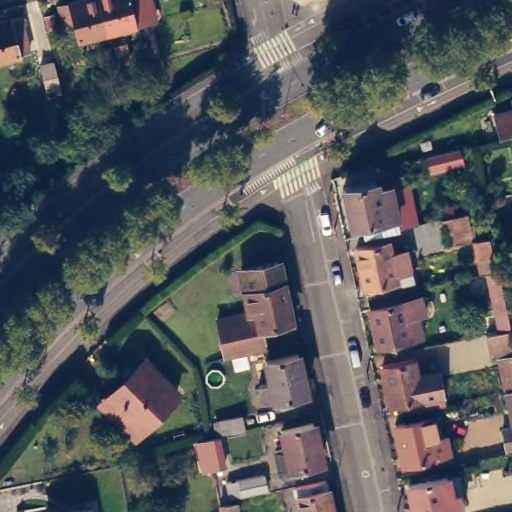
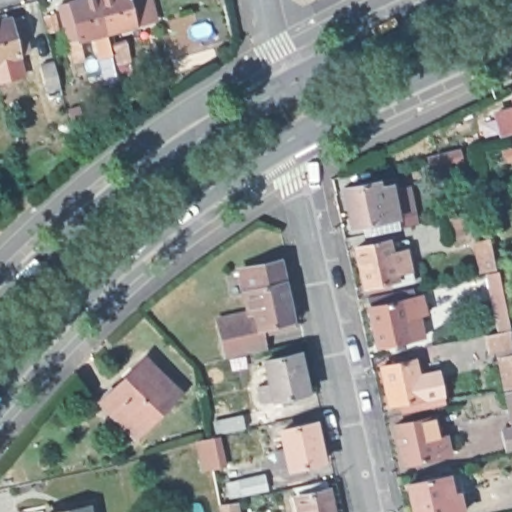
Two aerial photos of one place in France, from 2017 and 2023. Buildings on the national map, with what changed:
unchanged [(85,35),(90,55),(78,57),(74,36),(73,37),(64,0),(105,0),(112,28),(85,35)]
unchanged [(105,0),(157,0),(160,15),(112,28),(105,0)]
unchanged [(1,18),(0,14),(0,11),(10,9),(12,15),(26,11),(35,47),(23,50),(24,51),(0,57),(0,18),(1,18)]
unchanged [(54,28),(50,12),(60,9),(65,25),(54,28)]
unchanged [(125,43),(130,61),(119,64),(114,46),(125,43)]
unchanged [(108,74),(102,49),(110,47),(116,72),(108,74)]
unchanged [(48,92),(41,66),(55,62),(61,88),(48,92)]
unchanged [(412,283),(371,292),(370,286),(365,287),(356,247),(355,238),(370,235),(367,224),(352,227),(343,183),(375,176),(375,181),(377,187),(390,184),(396,217),(399,229),(378,233),(380,243),(388,241),(390,254),(405,251),(412,283)]
unchanged [(471,232),(446,237),(441,215),(456,212),(465,211),(471,232)]
unchanged [(480,269),(473,236),(489,235),(495,264),(480,269)]
unchanged [(293,321),(263,327),(266,347),(224,356),(217,313),(245,307),(235,266),(282,255),(293,321)]
unchanged [(498,328),(486,269),(498,267),(509,312),(511,325),(512,328),(512,341),(490,346),(487,330),(498,328)]
unchanged [(405,290),(407,300),(403,301),(404,316),(418,313),(423,337),(402,341),(405,348),(395,349),(395,344),(378,347),(367,298),(405,290)]
unchanged [(303,349),(312,388),(293,393),(295,399),(286,401),(285,395),(267,399),(262,382),(275,379),(270,356),(303,349)]
unchanged [(497,353),(512,351),(512,382),(505,384),(497,353)]
unchanged [(172,392),(130,435),(98,402),(140,360),(172,392)]
unchanged [(413,365),(421,404),(420,404),(420,412),(407,415),(406,408),(391,410),(382,372),(413,365)]
unchanged [(512,386),(512,412),(507,388),(512,386)]
unchanged [(218,430),(215,416),(242,411),(245,424),(218,430)]
unchanged [(327,452),(310,457),(311,463),(293,467),(290,468),(287,468),(285,466),(283,464),(279,441),(290,438),(286,420),(318,413),(327,452)]
unchanged [(431,413),(433,422),(439,444),(444,441),(448,460),(404,469),(395,430),(405,428),(403,419),(431,413)]
unchanged [(203,466),(197,436),(213,432),(220,462),(203,466)]
unchanged [(227,475),(265,466),(269,482),(230,490),(227,475)]
unchanged [(441,476),(446,496),(453,495),(457,512),(410,512),(403,484),(441,476)]
unchanged [(333,512),(299,512),(295,489),(326,482),(328,490),(333,512)]
unchanged [(219,512),(217,502),(238,499),(240,512),(219,512)]
unchanged [(88,512),(45,512),(45,511),(86,503),(88,512)]

